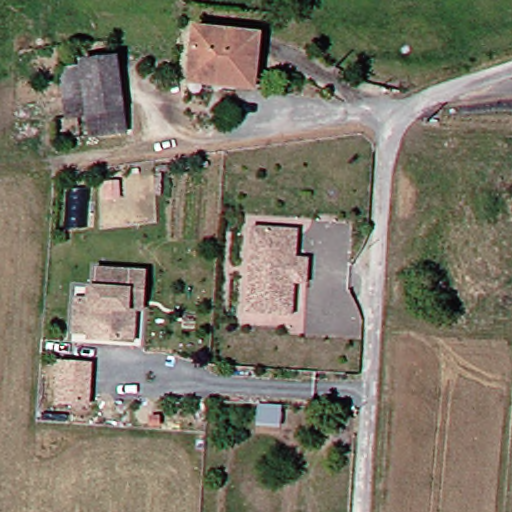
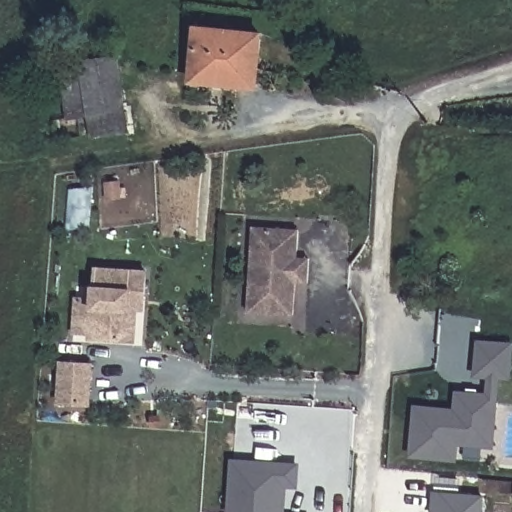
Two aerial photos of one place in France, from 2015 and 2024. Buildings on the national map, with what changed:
unchanged [(251,88),(190,81),(194,28),(255,34),(251,88)]
unchanged [(124,136),(90,140),(79,69),(115,66),(124,136)]
unchanged [(304,285),(292,284),(289,317),(244,313),(252,227),(297,232),(294,259),(306,261),(304,285)]
unchanged [(84,338),(68,337),(71,303),(86,304),(87,292),(89,292),(90,273),(140,277),(138,305),(137,315),(130,314),(128,346),(121,346),(101,344),(84,343),(84,338)]
new [(452,408),(454,390),(485,392),(486,379),(472,377),(476,339),(512,343),(512,366),(510,380),(499,379),(494,449),(458,446),(457,461),(408,457),(412,405),(452,408)]
unchanged [(89,405),(58,403),(61,363),(92,366),(89,405)]
new [(298,489),(286,488),(286,512),(227,512),(230,459),(300,463),(298,489)]
new [(483,495),(482,512),(431,512),(431,491),(483,495)]

